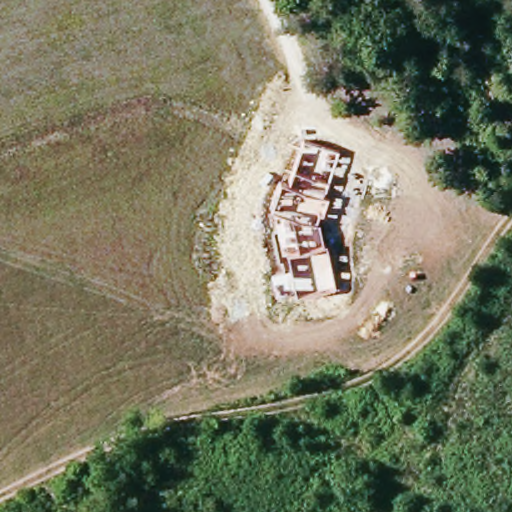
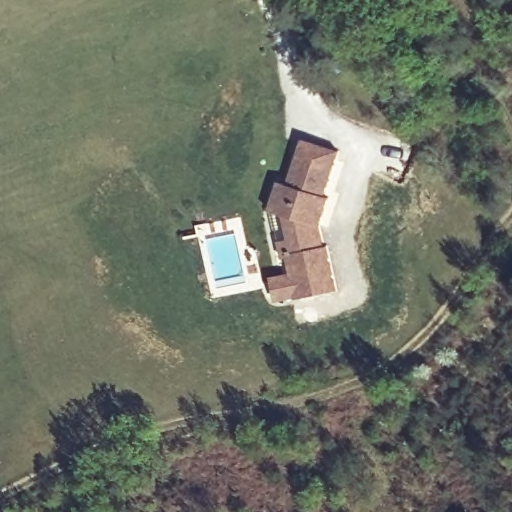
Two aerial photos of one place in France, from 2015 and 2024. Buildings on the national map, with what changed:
new [(339,152),(324,196),(327,197),(319,224),(324,246),(326,246),(337,289),(275,303),(270,278),(289,273),(287,259),(282,260),(272,213),(269,212),(277,182),(287,184),(302,139),(339,152)]

